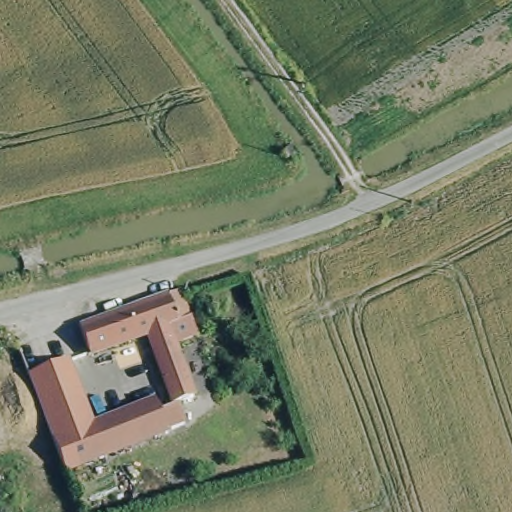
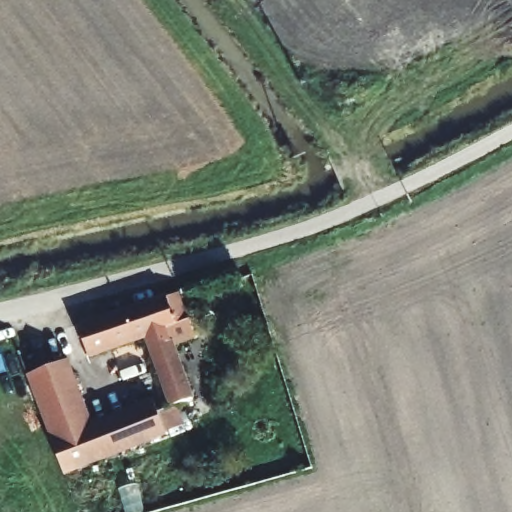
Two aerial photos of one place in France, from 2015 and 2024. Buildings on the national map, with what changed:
unchanged [(67,474),(28,374),(71,357),(94,421),(154,398),(159,410),(171,406),(148,338),(93,358),(81,324),(169,294),(170,297),(184,293),(198,337),(179,345),(195,390),(196,397),(179,402),(186,425),(168,432),(169,436),(67,474)]

